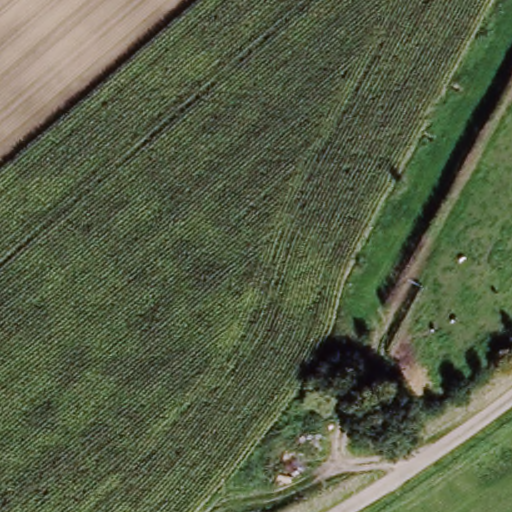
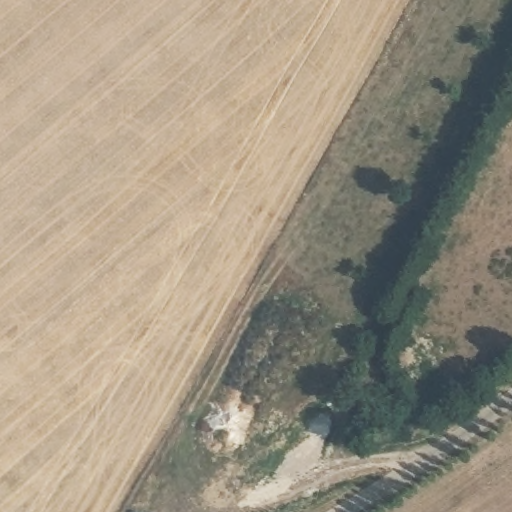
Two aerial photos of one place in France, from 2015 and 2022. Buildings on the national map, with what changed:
[]

